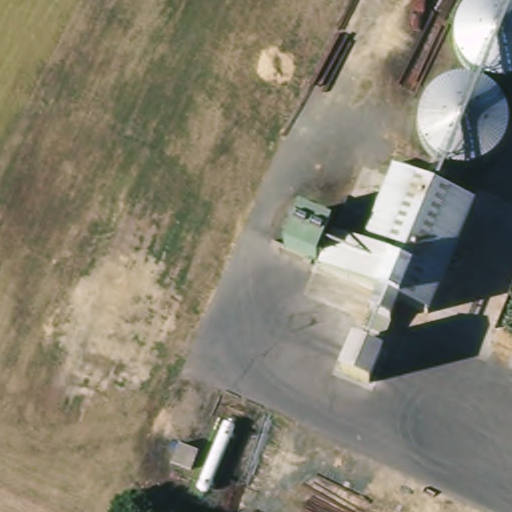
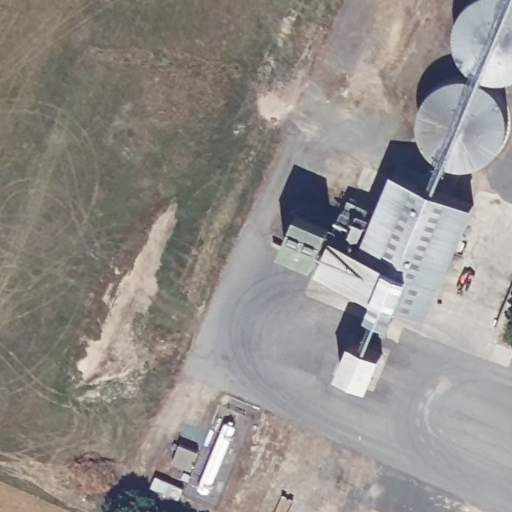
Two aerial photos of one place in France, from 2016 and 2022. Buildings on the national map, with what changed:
unchanged [(425,91),(435,80),(441,74),(450,72),(463,72),(474,73),(460,61),(457,58),(452,46),(451,37),(452,22),(458,10),(466,1),(467,0),(512,0),(512,81),(502,82),(491,80),(503,88),(511,100),(512,103),(512,130),(494,160),(485,166),(475,168),(460,168),(440,159),(427,147),(421,141),(416,127),(416,115),(419,101),(425,91)]
unchanged [(478,206),(432,318),(403,306),(395,325),(368,316),(377,297),(387,262),(360,255),(380,211),(393,170),(478,206)]
unchanged [(360,255),(387,262),(377,297),(368,316),(349,307),(356,282),(319,265),(330,236),(322,233),(331,232),(352,197),(380,211),(360,255)]
unchanged [(322,233),(330,236),(319,265),(286,251),(297,224),(322,233)]
unchanged [(368,394),(327,378),(343,337),(386,352),(368,394)]

